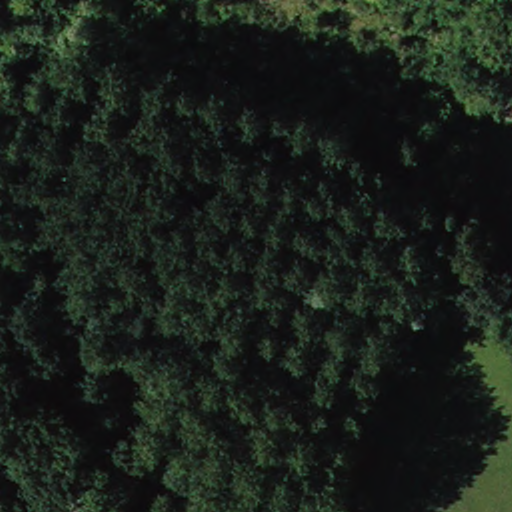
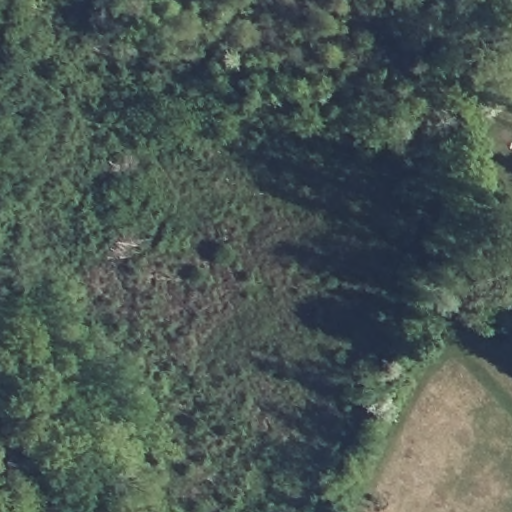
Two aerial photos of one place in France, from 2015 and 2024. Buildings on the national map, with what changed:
[]

